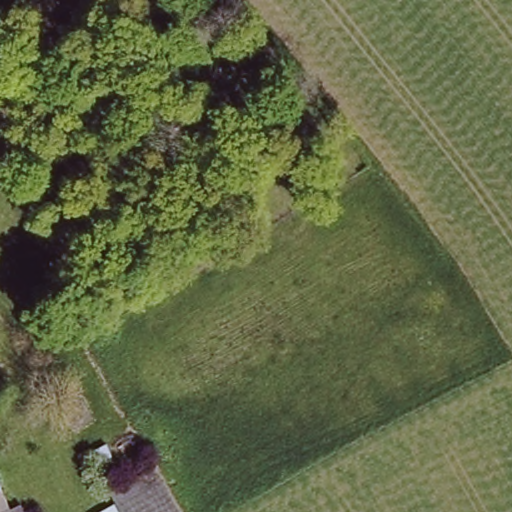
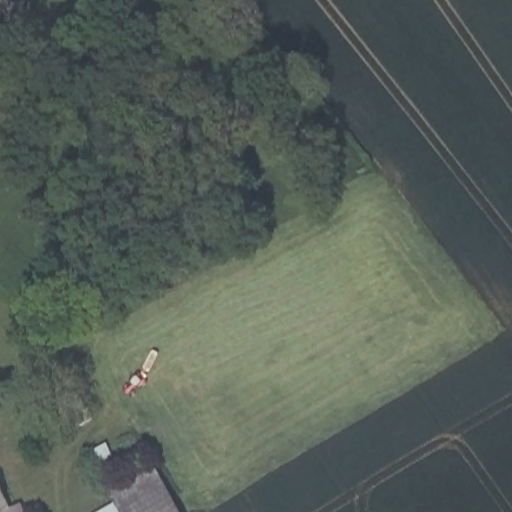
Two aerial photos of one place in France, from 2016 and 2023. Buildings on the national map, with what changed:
unchanged [(130,483),(155,471),(175,509),(177,512),(119,512),(109,493),(130,483)]
unchanged [(0,512),(0,493),(9,512),(0,512)]
unchanged [(24,512),(18,512),(23,510),(24,512)]

